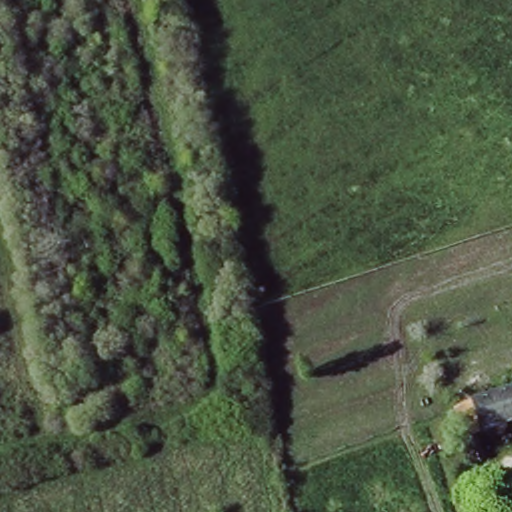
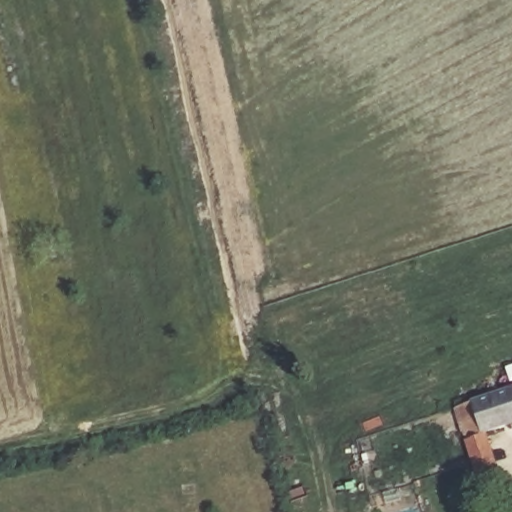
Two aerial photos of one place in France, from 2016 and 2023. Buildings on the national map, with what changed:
unchanged [(480,435),(487,470),(465,476),(442,406),(512,386),(512,424),(480,435)]

